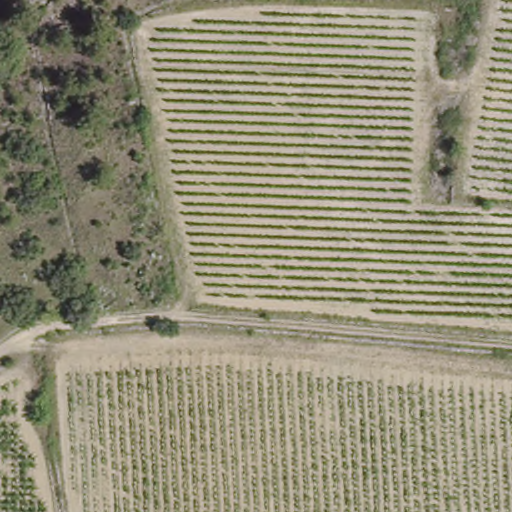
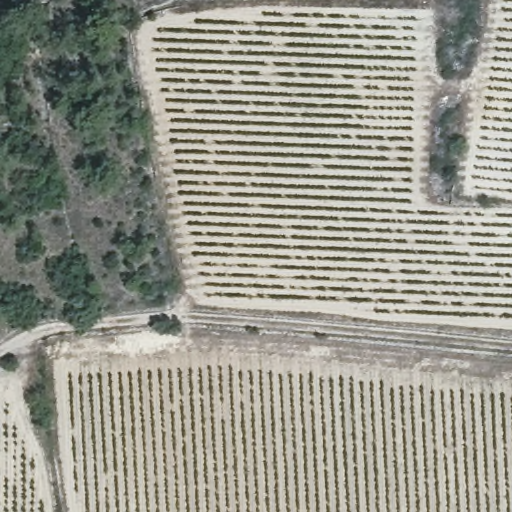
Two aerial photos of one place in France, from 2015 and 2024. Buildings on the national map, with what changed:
[]

